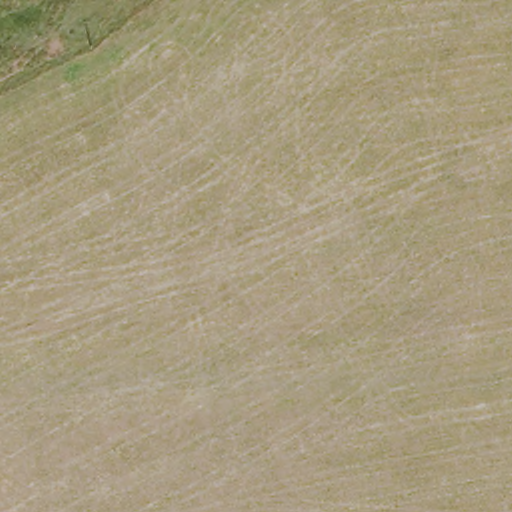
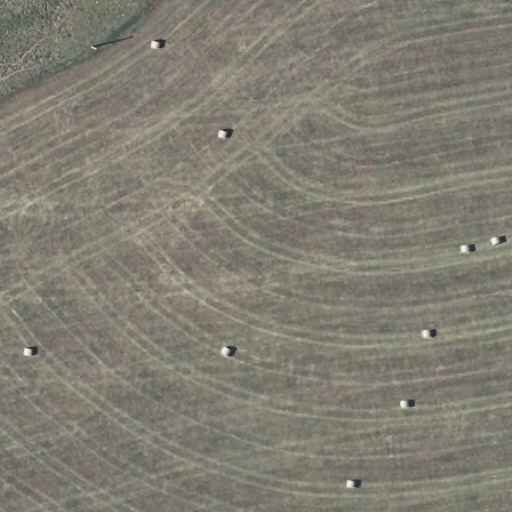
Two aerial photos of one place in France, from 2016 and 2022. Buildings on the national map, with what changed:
[]

